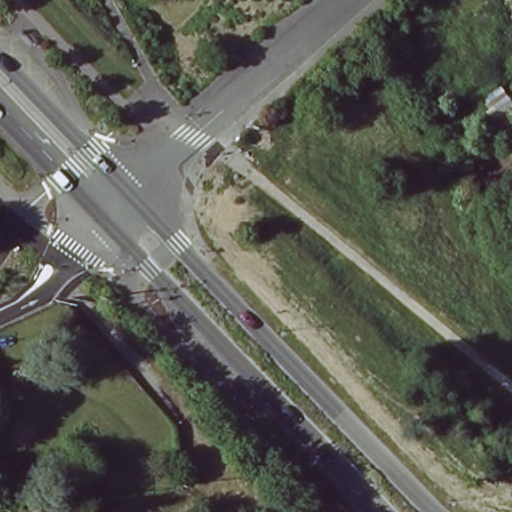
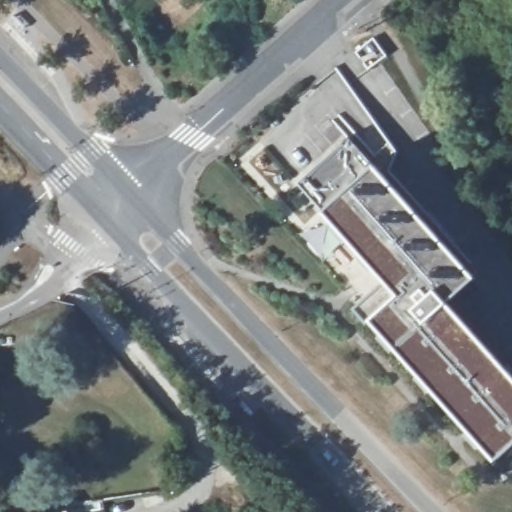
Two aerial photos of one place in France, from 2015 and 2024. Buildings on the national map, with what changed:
unchanged [(501,83),(512,100),(512,152),(477,102),(501,83)]
new [(368,319),(355,305),(384,279),(322,209),(297,184),(348,136),(373,164),(475,276),(447,301),(512,374),(512,442),(493,459),(368,319)]

